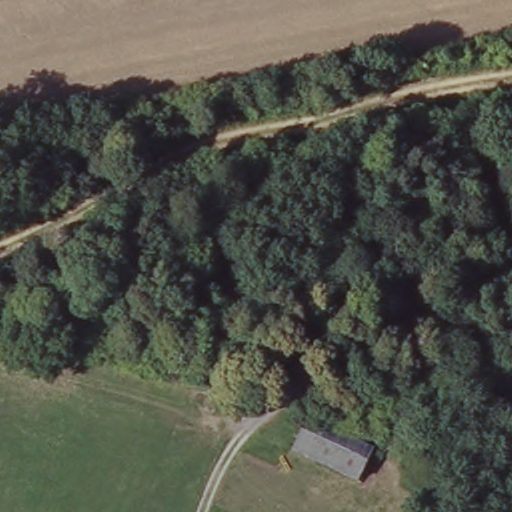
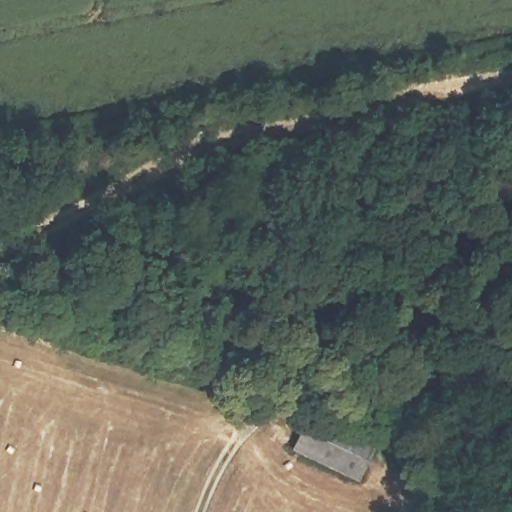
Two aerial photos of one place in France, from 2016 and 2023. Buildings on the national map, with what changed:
unchanged [(310,424),(375,454),(358,489),(289,458),(310,424)]

